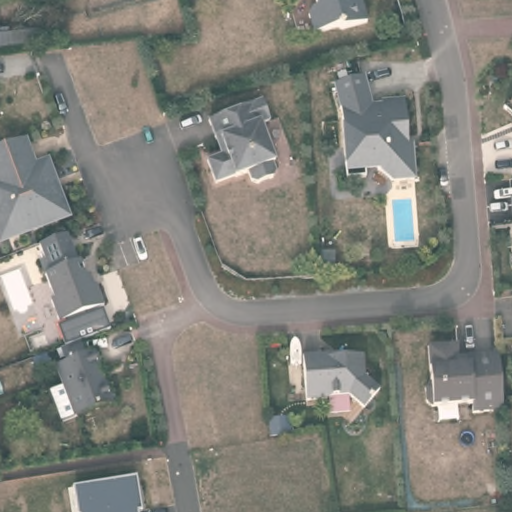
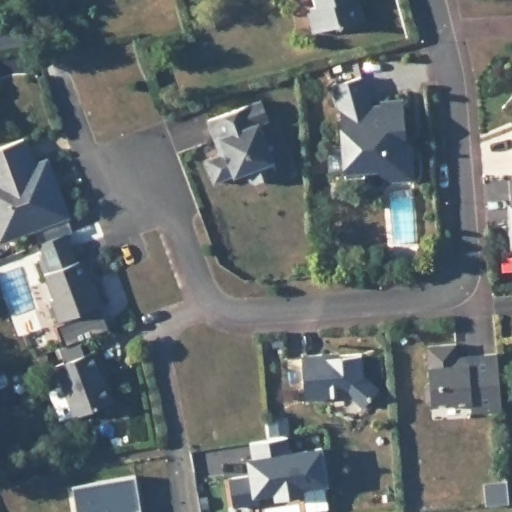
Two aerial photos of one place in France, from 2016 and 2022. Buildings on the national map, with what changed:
unchanged [(364,23),(340,30),(336,27),(312,34),(307,16),(310,10),(316,8),(314,0),(358,0),(364,23)]
unchanged [(36,27),(38,48),(0,51),(0,30),(36,27)]
unchanged [(364,78),(373,109),(383,108),(382,104),(406,102),(409,148),(413,148),(416,180),(394,182),(380,170),(380,165),(366,166),(367,176),(348,177),(342,112),(335,87),(364,78)]
unchanged [(512,99),(512,116),(503,109),(512,99)]
unchanged [(262,104),(269,123),(260,127),(274,165),(272,166),(275,175),(272,181),(256,187),(251,184),(248,175),(235,180),(234,179),(215,186),(207,163),(221,157),(209,123),(262,104)]
unchanged [(24,141),(34,168),(47,163),(67,218),(0,243),(0,151),(24,141)]
unchanged [(52,279),(42,252),(67,243),(77,269),(81,268),(91,295),(96,293),(103,313),(59,329),(51,308),(54,306),(45,282),(52,279)]
unchanged [(114,400),(76,414),(56,364),(66,360),(60,346),(79,339),(85,353),(94,349),(114,400)]
unchanged [(503,410),(474,412),(473,402),(432,404),(427,401),(427,387),(433,380),(429,346),(458,342),(459,364),(470,363),(469,355),(498,353),(502,405),(503,410)]
unchanged [(321,353),(325,356),(360,354),(361,374),(376,387),(361,405),(346,393),(324,394),(324,396),(303,398),(300,355),(321,353)]
new [(249,474),(247,457),(254,456),(250,442),(272,437),(268,418),(289,416),(291,434),(289,435),(292,450),(323,445),(329,485),(303,488),(305,496),(276,499),(275,494),(259,496),(259,503),(234,507),(229,478),(249,474)]
unchanged [(140,512),(76,512),(72,490),(136,477),(140,512)]

